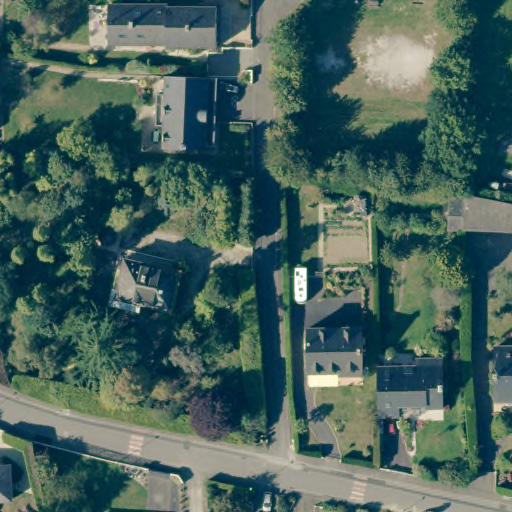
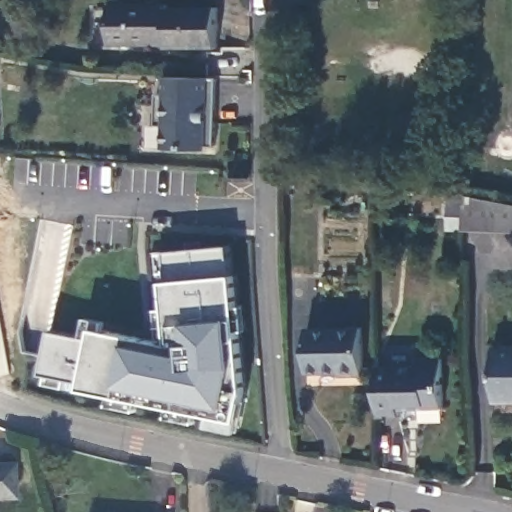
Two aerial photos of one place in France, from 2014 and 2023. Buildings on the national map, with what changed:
unchanged [(111,47),(111,7),(170,7),(170,10),(219,10),(218,49),(169,50),(169,47),(158,47),(111,47)]
unchanged [(210,146),(201,146),(201,149),(159,147),(160,125),(151,124),(153,92),(161,93),(162,75),(187,76),(213,77),(211,108),(211,121),(210,146)]
unchanged [(464,231),(453,230),(451,192),(463,194),(487,200),(512,205),(512,232),(503,232),(464,229),(464,231)]
demolished [(9,225),(0,226),(0,200),(5,199),(9,225)]
new [(235,276),(246,391),(239,434),(212,427),(213,416),(83,390),(84,383),(43,374),(53,331),(93,339),(95,328),(172,345),(165,282),(173,280),(167,251),(229,247),(235,276)]
demolished [(180,273),(171,310),(142,303),(140,312),(109,305),(111,296),(117,297),(126,260),(180,273)]
unchanged [(363,328),(363,373),(341,374),(341,371),(307,371),(306,328),(363,328)]
unchanged [(512,349),(512,399),(495,400),(494,349),(512,349)]
unchanged [(416,365),(416,357),(443,357),(444,406),(421,407),(421,414),(411,414),(406,419),(399,415),(379,415),(378,366),(416,365)]
unchanged [(0,467),(10,467),(10,500),(0,500),(0,467)]

